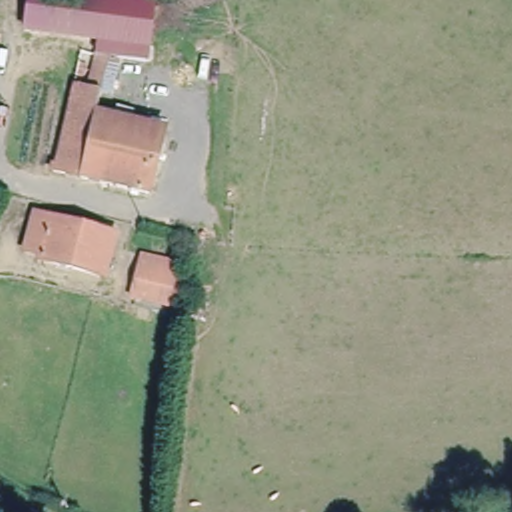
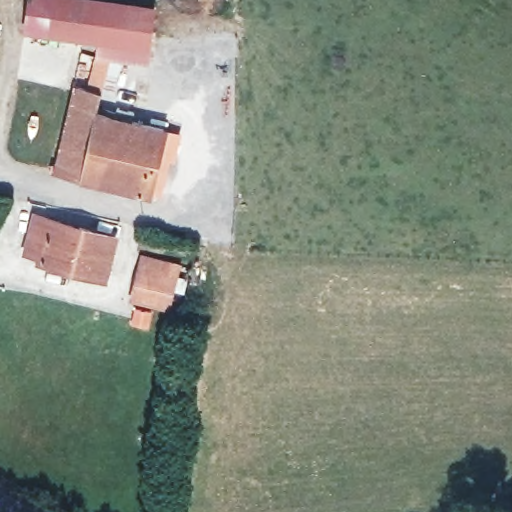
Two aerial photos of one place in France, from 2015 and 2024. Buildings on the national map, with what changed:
unchanged [(76,84),(91,87),(98,54),(100,45),(24,34),(28,0),(105,0),(156,6),(149,66),(132,66),(129,89),(117,87),(116,94),(104,90),(98,112),(82,175),(56,169),(76,84)]
unchanged [(167,130),(151,193),(82,175),(98,112),(167,130)]
unchanged [(114,235),(103,275),(38,259),(40,254),(26,249),(31,213),(114,235)]
unchanged [(142,259),(178,269),(169,303),(132,293),(142,259)]

